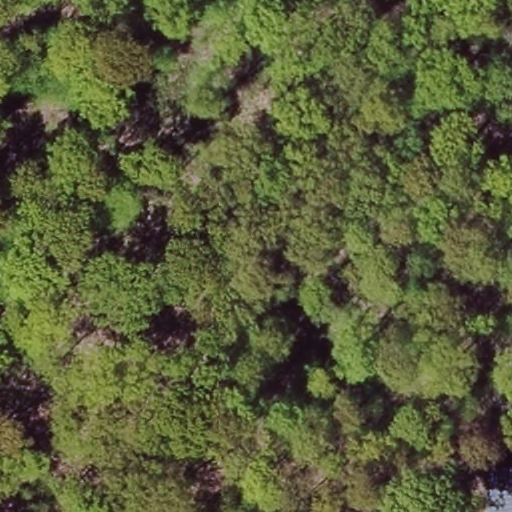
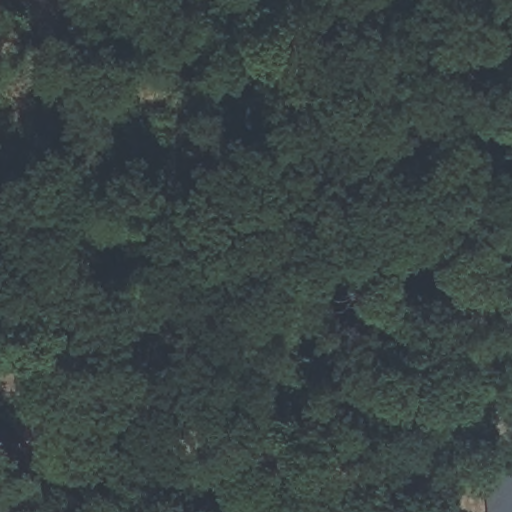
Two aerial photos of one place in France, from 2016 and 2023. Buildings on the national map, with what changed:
unchanged [(492,512),(490,469),(512,467),(512,512),(492,512)]

